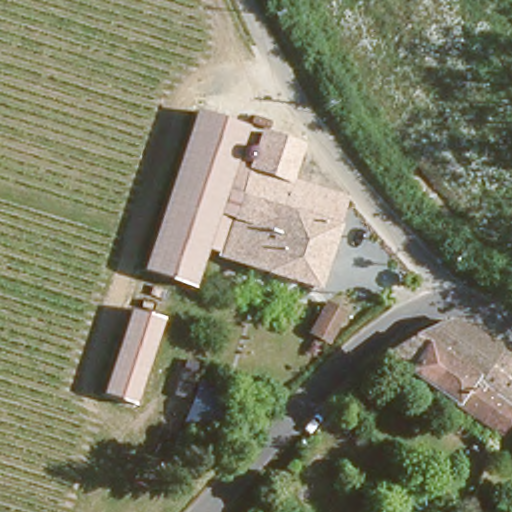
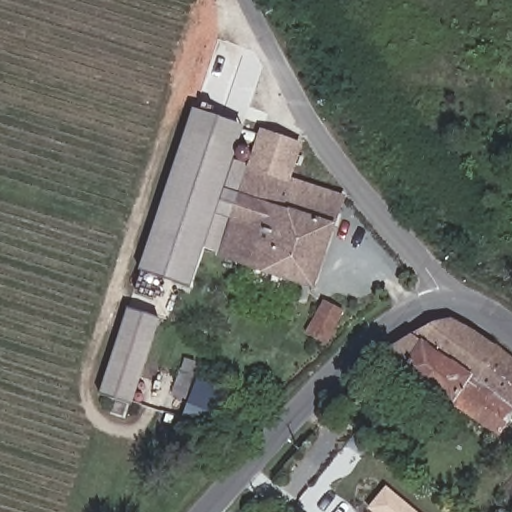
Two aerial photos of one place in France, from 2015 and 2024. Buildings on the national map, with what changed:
unchanged [(142,271),(192,109),(245,126),(237,159),(251,164),(220,254),(205,250),(193,288),(142,271)]
unchanged [(220,254),(251,164),(260,137),(290,147),(283,171),(345,194),(308,283),(220,254)]
unchanged [(308,324),(318,306),(335,315),(326,332),(308,324)]
unchanged [(132,403),(102,394),(131,310),(160,320),(132,403)]
unchanged [(502,423),(487,414),(481,421),(384,352),(418,330),(447,318),(463,325),(512,362),(512,414),(509,412),(502,423)]
unchanged [(166,392),(174,367),(177,360),(192,366),(181,397),(166,392)]
new [(388,487),(417,512),(372,512),(369,509),(388,487)]

